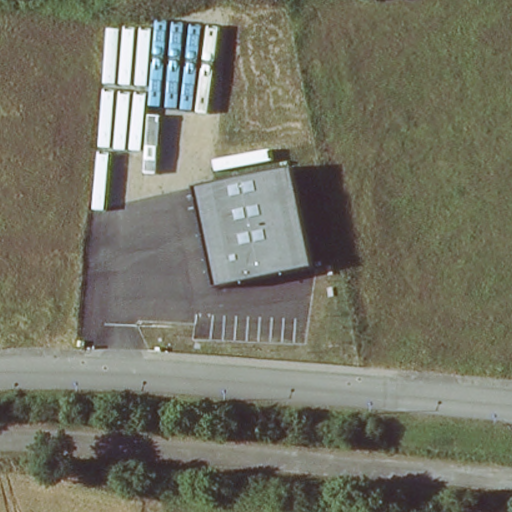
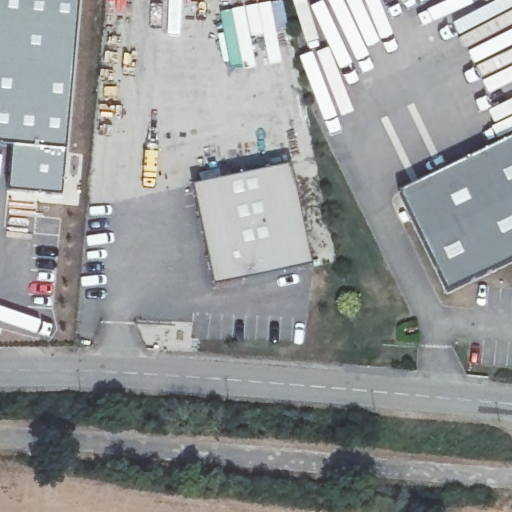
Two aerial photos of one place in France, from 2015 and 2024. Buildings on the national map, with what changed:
new [(14,147),(0,146),(0,0),(78,0),(66,151),(63,196),(10,191),(14,147)]
new [(447,292),(398,191),(512,136),(512,260),(447,292)]
unchanged [(290,167),(313,266),(217,286),(196,186),(290,167)]

